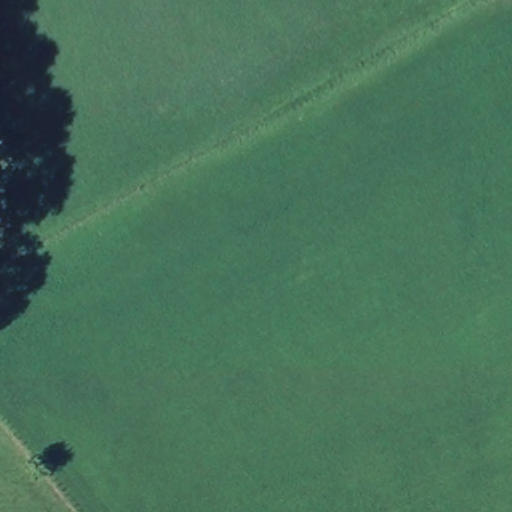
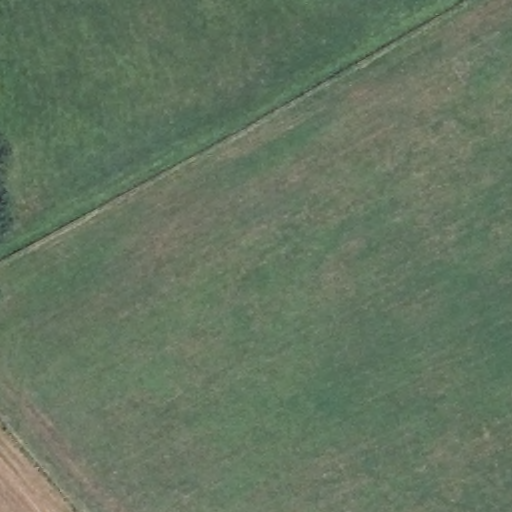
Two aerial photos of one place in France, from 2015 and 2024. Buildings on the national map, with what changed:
[]

